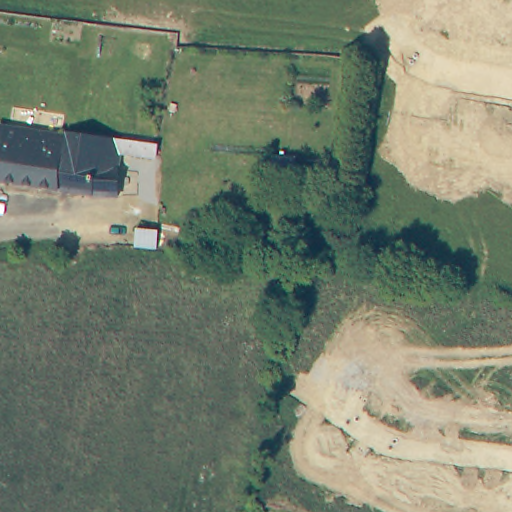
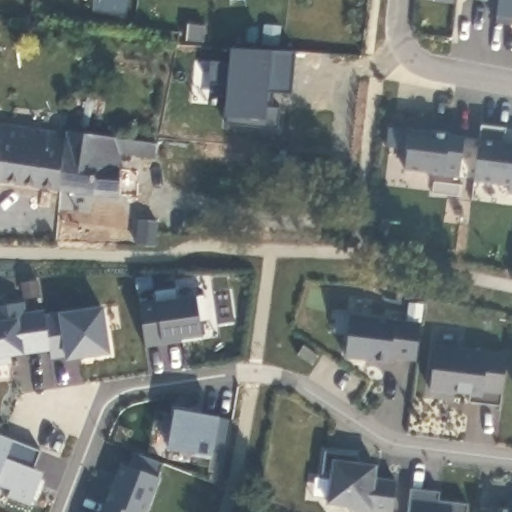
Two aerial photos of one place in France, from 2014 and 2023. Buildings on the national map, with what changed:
new [(474,0),(487,0),(487,2),(474,0)]
unchanged [(497,0),(512,0),(512,26),(494,23),(497,0)]
new [(276,111),(276,127),(227,123),(232,50),(288,53),(287,97),(269,96),(268,110),(276,111)]
unchanged [(0,180),(0,124),(64,132),(57,186),(0,180)]
new [(504,141),(512,143),(512,194),(509,194),(511,187),(474,183),(481,125),(505,128),(504,141)]
unchanged [(64,132),(64,126),(122,133),(118,169),(115,192),(57,186),(64,132)]
new [(465,136),(460,176),(404,170),(407,129),(465,136)]
demolished [(71,245),(49,244),(0,241),(0,220),(52,223),(72,224),(71,245)]
new [(162,343),(144,345),(141,305),(158,303),(198,298),(203,336),(162,343)]
new [(66,359),(55,361),(52,351),(13,358),(13,364),(0,366),(0,305),(26,301),(29,312),(44,310),(46,315),(57,314),(103,307),(110,354),(66,359)]
unchanged [(421,323),(416,362),(391,359),(390,364),(344,358),(349,313),(421,323)]
new [(508,354),(501,406),(469,403),(470,396),(429,391),(436,344),(508,354)]
new [(227,475),(217,474),(219,451),(216,451),(214,457),(168,449),(174,411),(219,417),(238,419),(227,475)]
new [(35,469),(46,474),(32,507),(9,498),(11,490),(0,486),(0,436),(42,452),(35,469)]
new [(159,477),(145,512),(104,512),(124,463),(131,466),(135,452),(165,463),(159,477)]
new [(359,455),(360,463),(378,465),(376,478),(396,481),(393,512),(349,512),(349,510),(334,508),(334,506),(326,505),(330,474),(322,472),(325,452),(359,455)]
new [(439,493),(438,501),(467,504),(466,512),(407,512),(410,489),(439,493)]
new [(491,505),(512,508),(512,512),(490,512),(491,505)]

